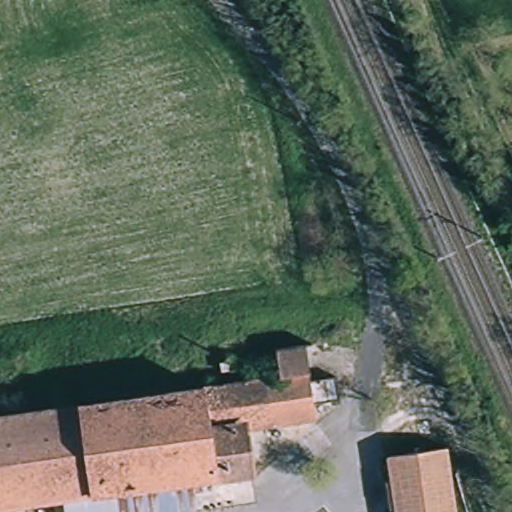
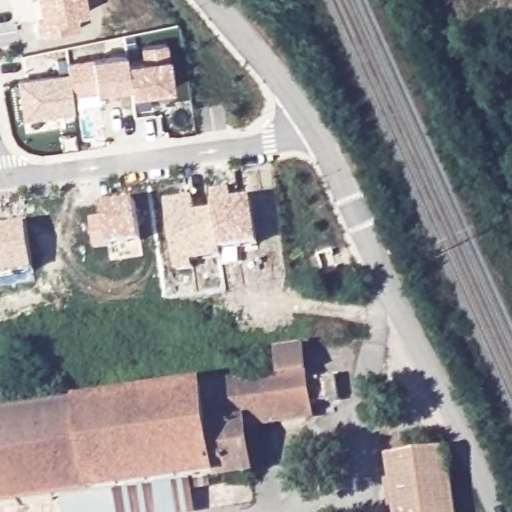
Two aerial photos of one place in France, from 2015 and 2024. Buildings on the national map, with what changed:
new [(88,11),(75,14),(79,27),(38,34),(35,19),(41,19),(37,0),(85,0),(88,11)]
new [(175,90),(131,95),(130,86),(94,91),(72,95),(75,110),(23,118),(16,78),(68,70),(66,61),(90,57),(124,52),(126,61),(141,59),(139,44),(167,41),(169,58),(170,58),(175,90)]
new [(253,198),(259,243),(220,248),(221,257),(191,261),(192,268),(175,270),(165,200),(192,197),(194,214),(214,211),(214,205),(211,192),(230,190),(229,202),(253,198)]
new [(135,200),(141,243),(108,246),(94,246),(89,219),(105,217),(102,206),(135,200)]
new [(28,224),(35,270),(0,275),(0,228),(28,224)]
unchanged [(279,375),(275,349),(303,345),(308,381),(336,377),(339,400),(312,405),(314,416),(243,426),(250,472),(217,478),(203,387),(279,375)]
unchanged [(233,360),(235,369),(221,371),(220,362),(233,360)]
unchanged [(217,478),(191,481),(62,499),(0,508),(0,415),(203,387),(217,478)]
unchanged [(446,448),(455,512),(394,512),(387,456),(398,455),(446,448)]
unchanged [(196,512),(64,512),(62,499),(191,481),(196,512)]

